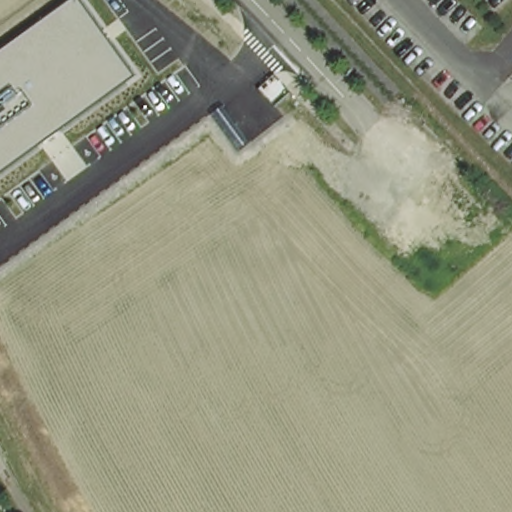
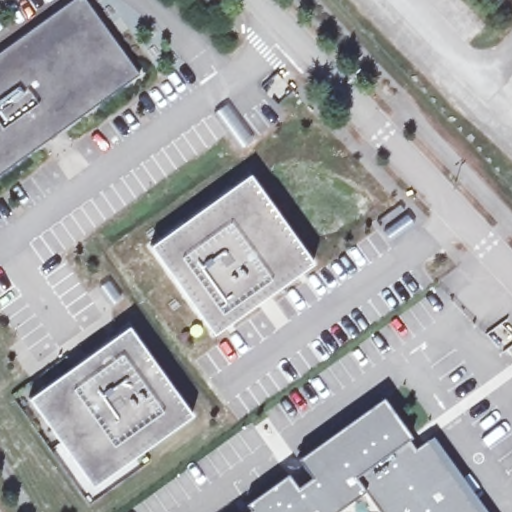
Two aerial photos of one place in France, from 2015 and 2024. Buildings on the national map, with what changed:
unchanged [(83,0),(140,74),(0,174),(0,52),(71,0),(83,0)]
new [(225,110),(251,146),(239,155),(213,119),(225,110)]
new [(253,177),(317,265),(217,337),(154,248),(253,177)]
new [(107,284),(119,299),(109,307),(97,291),(107,284)]
new [(127,329),(190,421),(92,486),(29,399),(127,329)]
new [(415,449),(433,436),(487,512),(382,512),(367,489),(335,512),(249,512),(252,510),(247,503),(302,464),(298,458),(382,397),(415,449)]

